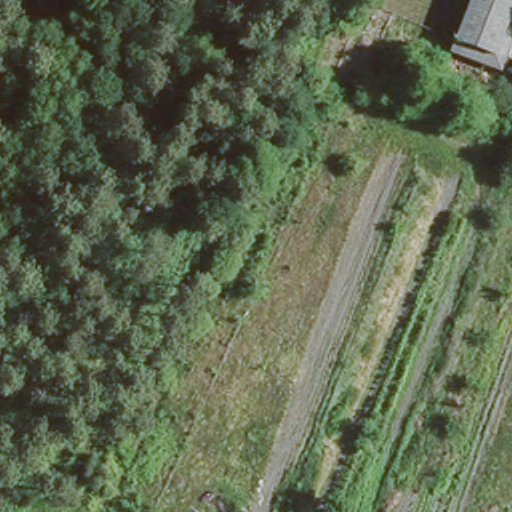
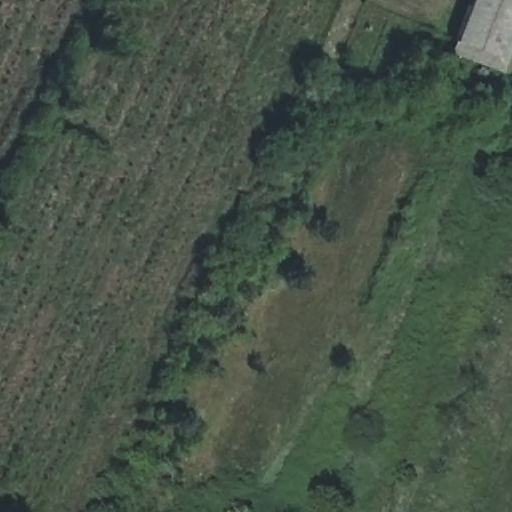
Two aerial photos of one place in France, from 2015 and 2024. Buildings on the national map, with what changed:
unchanged [(512,16),(501,49),(450,32),(462,0),(512,0),(512,16)]
unchanged [(446,45),(450,32),(501,49),(512,16),(512,52),(507,65),(446,45)]

